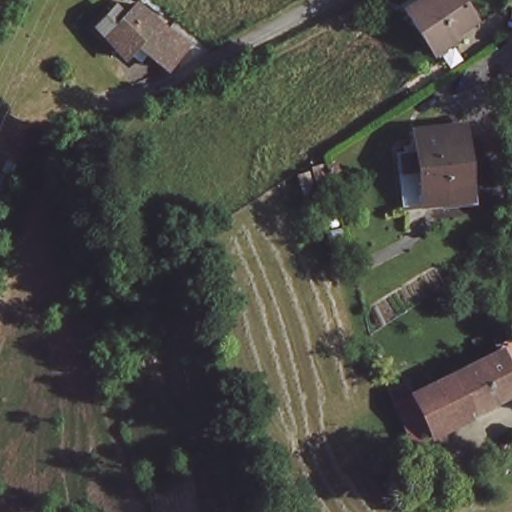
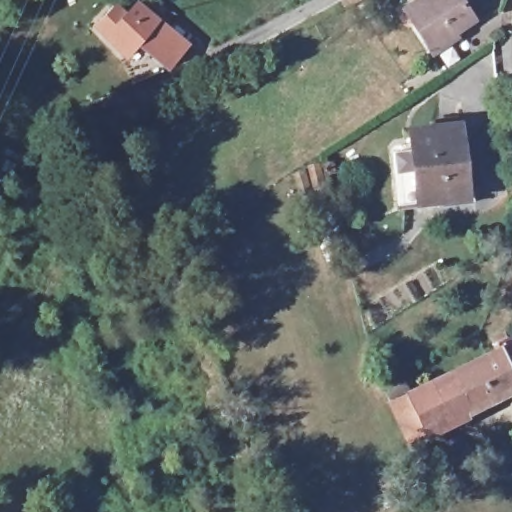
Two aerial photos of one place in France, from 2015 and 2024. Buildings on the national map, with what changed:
unchanged [(187,40),(170,63),(144,40),(132,55),(99,24),(113,6),(125,16),(138,0),(187,40)]
unchanged [(452,31),(457,39),(437,52),(407,9),(420,0),(468,0),(478,15),(452,31)]
unchanged [(414,131),(464,125),(470,159),(465,159),(471,192),(425,197),(417,145),(414,131)]
unchanged [(417,145),(425,197),(404,200),(398,147),(417,145)]
unchanged [(406,400),(499,356),(496,349),(512,342),(512,368),(508,370),(512,380),(512,393),(424,435),(403,445),(386,410),(406,400)]

